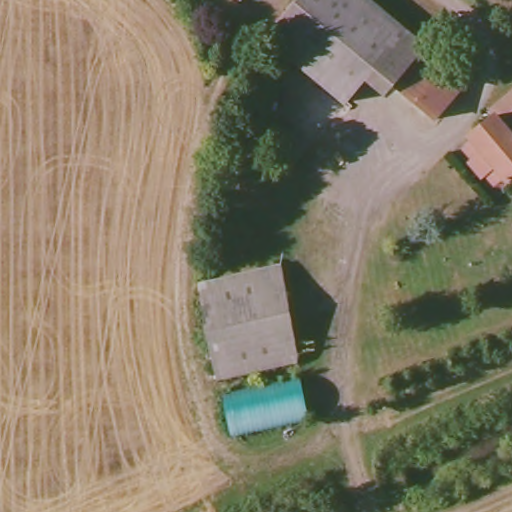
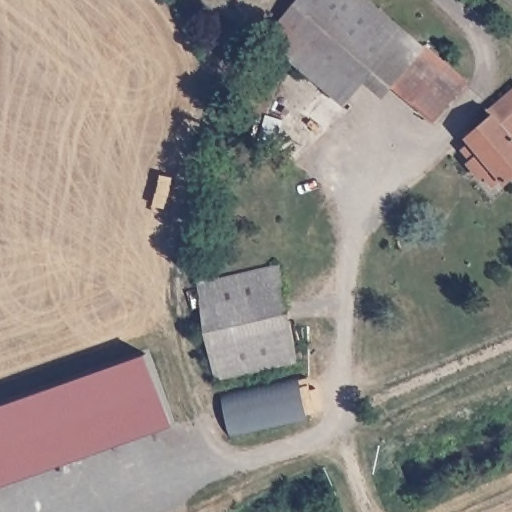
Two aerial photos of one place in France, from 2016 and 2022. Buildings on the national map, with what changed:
unchanged [(362,0),(404,35),(368,79),(346,106),(271,43),(306,0),(362,0)]
unchanged [(404,35),(464,83),(436,119),(398,88),(392,96),(368,79),(404,35)]
unchanged [(472,137),(493,117),(488,110),(512,90),(512,175),(507,179),(472,137)]
unchanged [(301,360),(222,376),(204,283),(283,267),(301,360)]
new [(148,347),(161,386),(171,420),(0,474),(0,393),(148,347)]
unchanged [(315,422),(234,436),(223,395),(309,375),(315,422)]

